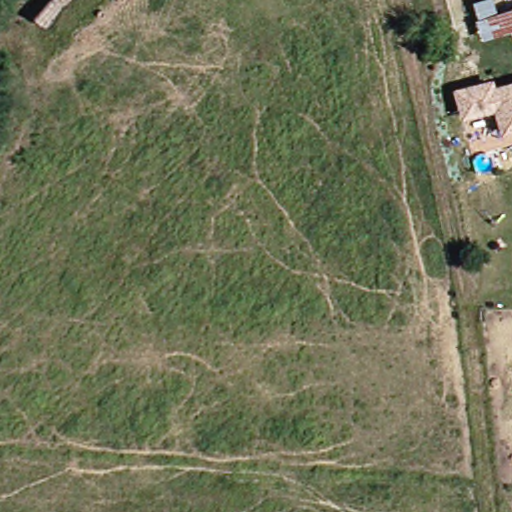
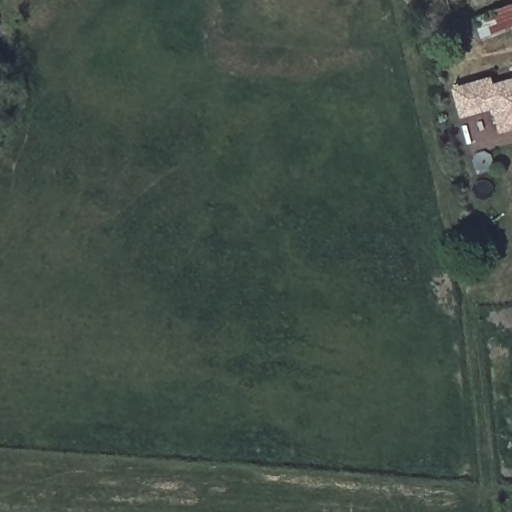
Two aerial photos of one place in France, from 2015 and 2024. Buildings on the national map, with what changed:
unchanged [(512,10),(512,30),(493,38),(485,22),(512,10)]
unchanged [(502,131),(496,112),(483,116),(463,122),(455,97),(466,94),(487,87),(490,94),(512,87),(512,134),(504,136),(502,131)]

